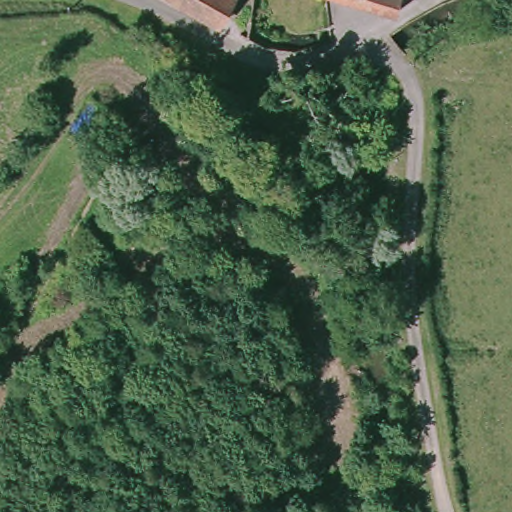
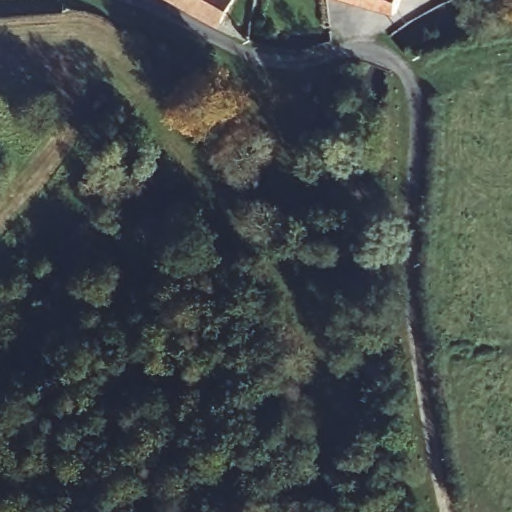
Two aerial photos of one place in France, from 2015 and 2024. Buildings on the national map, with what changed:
unchanged [(187,0),(233,0),(225,20),(187,0)]
unchanged [(349,0),(397,0),(393,13),(349,0)]

